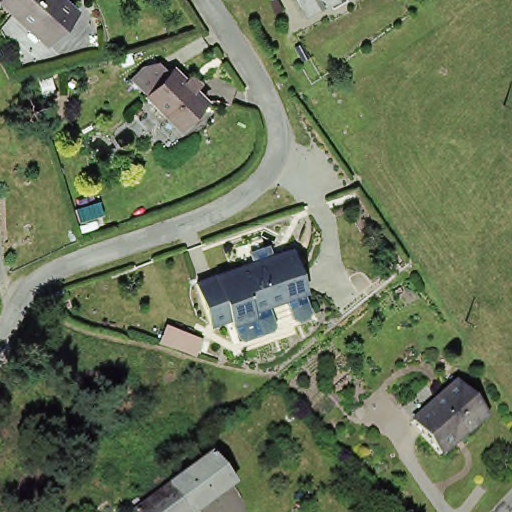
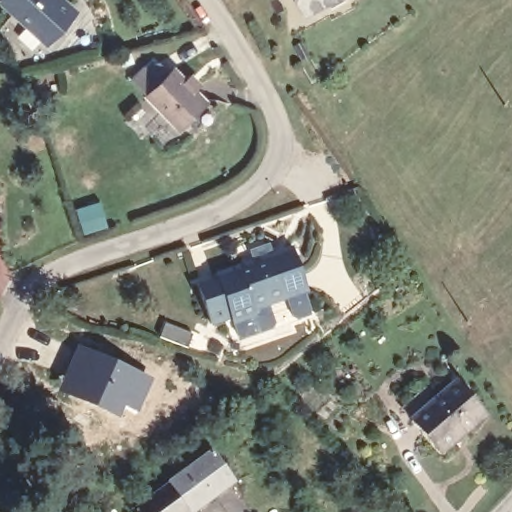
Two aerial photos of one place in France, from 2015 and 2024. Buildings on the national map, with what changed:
unchanged [(63,0),(67,3),(75,9),(70,14),(77,41),(14,52),(4,25),(15,9),(5,0),(63,0)]
unchanged [(272,0),(291,0),(277,8),(272,0)]
unchanged [(350,0),(326,14),(312,23),(299,0),(350,0)]
unchanged [(311,54),(300,60),(291,45),(302,39),(311,54)]
unchanged [(187,80),(192,75),(201,83),(196,89),(207,99),(182,128),(149,98),(132,82),(144,69),(159,64),(170,74),(175,69),(187,80)]
unchanged [(242,268),(236,249),(262,239),(265,248),(269,245),(272,257),(292,250),(307,292),(304,293),(310,313),(307,319),(297,322),(292,319),(285,300),(267,308),(275,327),(272,332),(244,344),(239,341),(232,324),(230,318),(210,324),(197,283),(217,276),(242,268)]
new [(154,380),(142,412),(127,406),(122,419),(58,393),(77,347),(154,380)]
unchanged [(487,418),(438,461),(410,429),(414,426),(403,414),(429,393),(437,404),(458,386),(487,418)]
unchanged [(207,457),(232,489),(201,512),(187,512),(167,487),(207,457)]
unchanged [(125,506),(136,497),(142,504),(143,506),(167,487),(187,512),(130,512),(125,506)]

